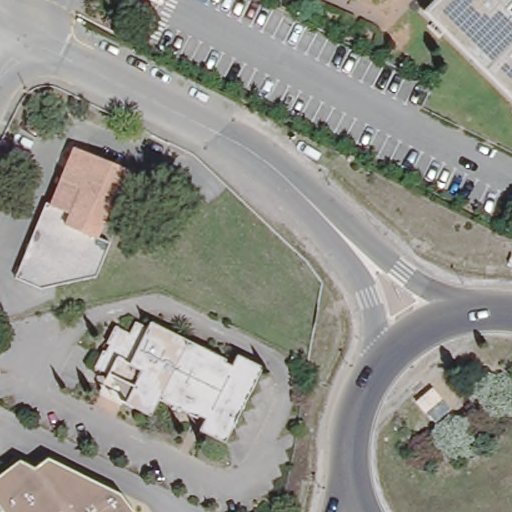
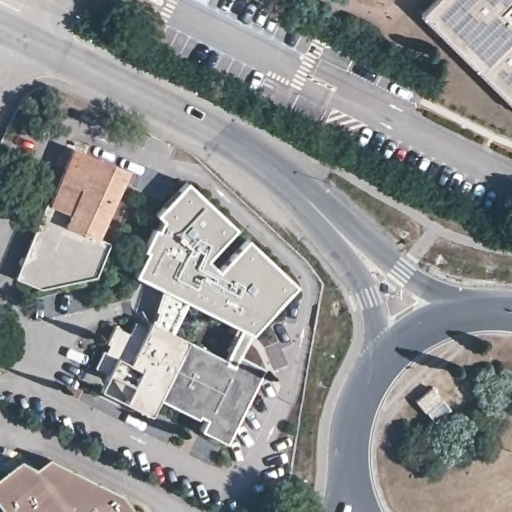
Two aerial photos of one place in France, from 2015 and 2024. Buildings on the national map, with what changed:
unchanged [(432,9),(441,0),(512,0),(512,3),(505,9),(512,16),(512,90),(432,9)]
unchanged [(78,143),(82,145),(127,165),(96,233),(63,221),(68,207),(53,201),(78,143)]
new [(252,332),(242,354),(237,352),(232,363),(224,359),(239,325),(188,300),(172,337),(153,329),(166,288),(135,274),(147,250),(143,248),(153,227),(157,229),(162,219),(156,213),(187,181),(236,227),(207,258),(219,268),(247,239),(297,284),(252,332)]
unchanged [(57,229),(48,224),(43,212),(49,199),(53,201),(68,207),(63,221),(96,233),(110,239),(95,272),(39,284),(32,280),(57,229)]
unchanged [(15,272),(39,220),(48,224),(57,229),(32,280),(15,272)]
unchanged [(126,406),(129,400),(112,382),(96,374),(114,331),(127,337),(132,326),(146,331),(148,326),(232,363),(237,352),(262,363),(229,441),(203,430),(208,419),(201,415),(200,416),(151,395),(142,413),(126,406)]
demolished [(465,402),(454,388),(471,375),(482,389),(465,402)]
unchanged [(427,412),(415,398),(432,385),(444,399),(427,412)]
unchanged [(0,505),(0,474),(21,458),(34,465),(48,454),(119,489),(135,512),(5,512),(0,505)]

